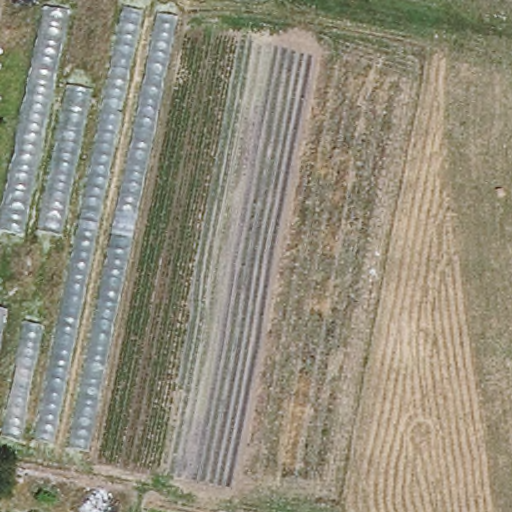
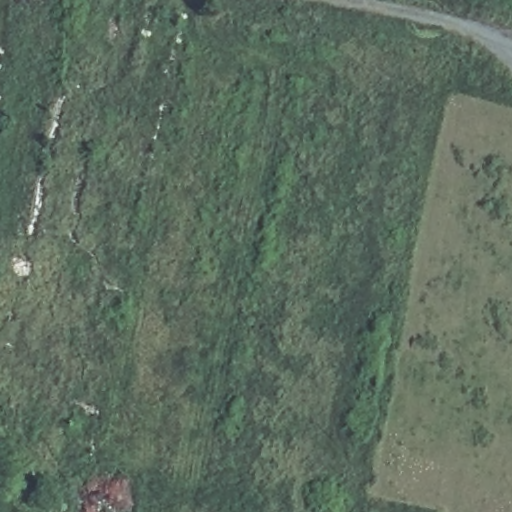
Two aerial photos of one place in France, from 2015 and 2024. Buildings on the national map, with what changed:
demolished [(61,322),(81,238),(30,228),(26,241),(0,235),(0,225),(47,0),(119,0),(183,12),(92,452),(7,433),(27,318),(61,322)]

